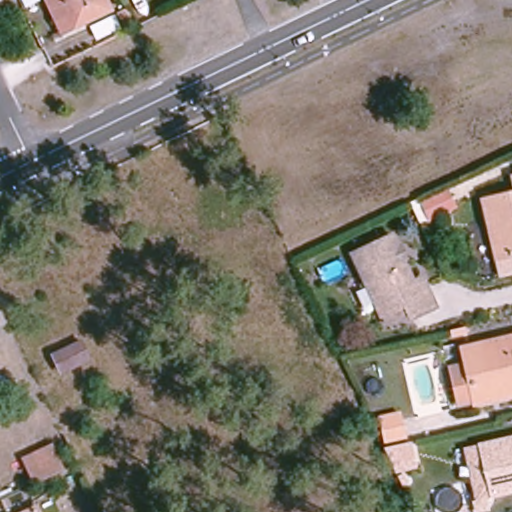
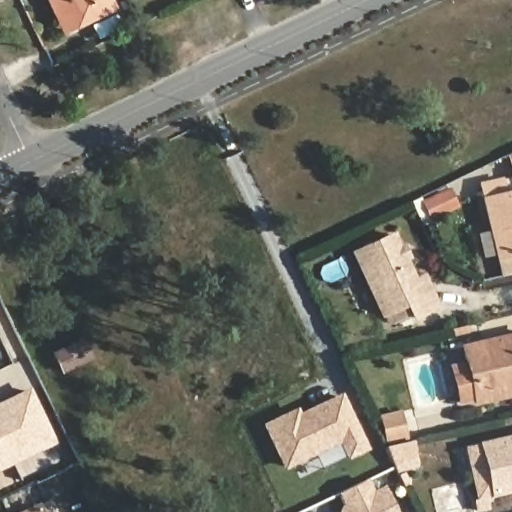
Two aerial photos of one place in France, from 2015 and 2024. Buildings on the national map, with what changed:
unchanged [(44,0),(107,0),(111,8),(82,22),(60,33),(54,20),(44,0)]
unchanged [(132,84),(136,92),(119,100),(115,91),(132,84)]
unchanged [(512,178),(512,194),(508,178),(512,178)]
unchanged [(459,213),(422,230),(409,202),(444,182),(459,213)]
unchanged [(478,201),(512,194),(512,255),(491,260),(478,201)]
unchanged [(379,315),(350,252),(390,236),(396,250),(400,260),(411,283),(421,279),(434,309),(409,319),(406,313),(382,322),(379,315)]
unchanged [(82,338),(93,363),(61,376),(51,352),(82,338)]
unchanged [(458,345),(512,338),(512,395),(469,401),(458,345)]
new [(27,388),(54,444),(0,470),(0,402),(27,388)]
new [(293,410),(295,415),(337,395),(362,447),(345,455),(337,438),(282,465),(263,424),(284,414),(293,410)]
unchanged [(471,443),(512,437),(512,487),(480,492),(471,443)]
unchanged [(62,468),(35,482),(23,458),(51,445),(62,468)]
unchanged [(410,464),(389,467),(382,450),(407,446),(408,456),(425,454),(426,462),(410,464)]
new [(339,508),(344,506),(337,492),(362,480),(368,494),(379,489),(391,512),(339,512),(339,508)]
unchanged [(35,508),(37,512),(28,512),(35,508)]

